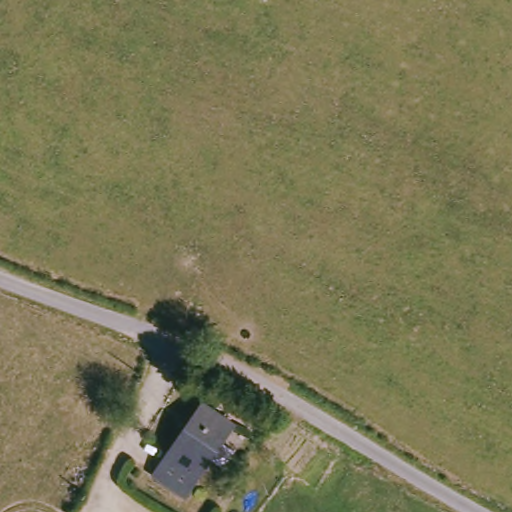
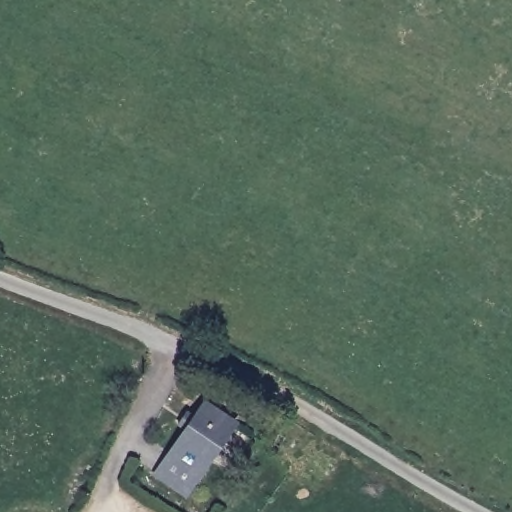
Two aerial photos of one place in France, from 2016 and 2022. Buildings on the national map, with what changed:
unchanged [(180,425),(190,411),(197,416),(207,401),(237,422),(185,496),(156,475),(188,430),(180,425)]

